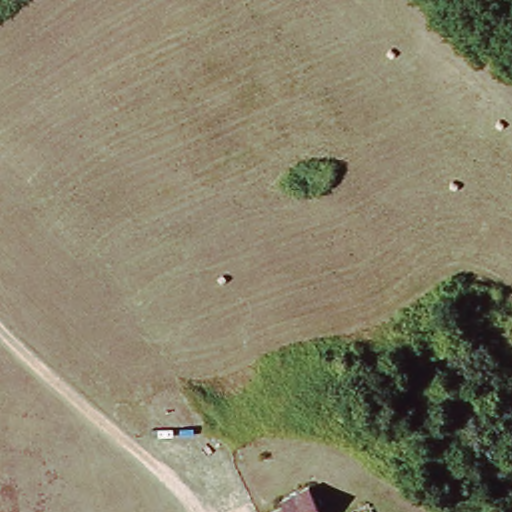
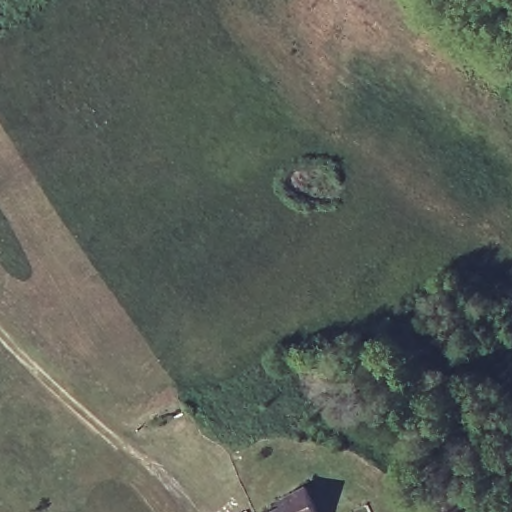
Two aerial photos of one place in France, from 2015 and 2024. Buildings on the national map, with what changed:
unchanged [(318,512),(264,512),(280,505),(276,495),(305,484),(318,512)]

